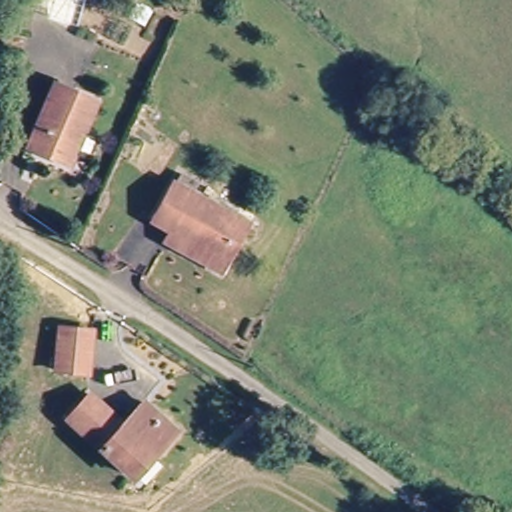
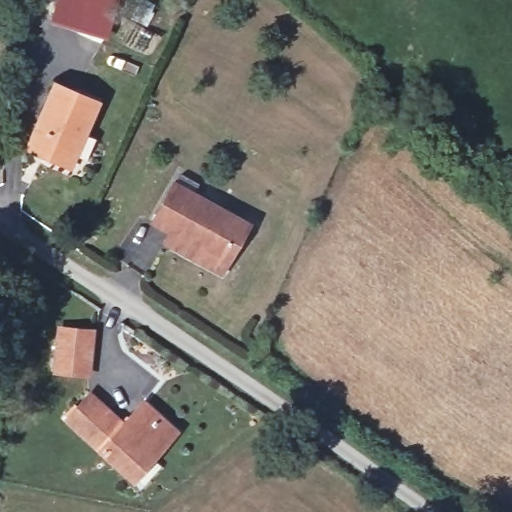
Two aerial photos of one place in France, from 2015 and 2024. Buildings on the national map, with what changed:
new [(119,0),(107,40),(49,21),(55,0),(119,0)]
unchanged [(76,161),(36,144),(60,84),(100,99),(76,161)]
unchanged [(167,237),(176,225),(156,212),(177,176),(250,221),(227,258),(219,272),(167,237)]
unchanged [(96,331),(90,376),(58,371),(61,326),(96,331)]
unchanged [(93,390),(127,420),(147,398),(177,426),(134,479),(70,417),(93,390)]

